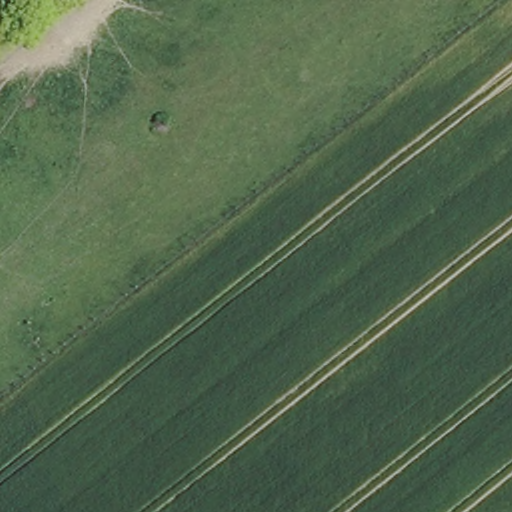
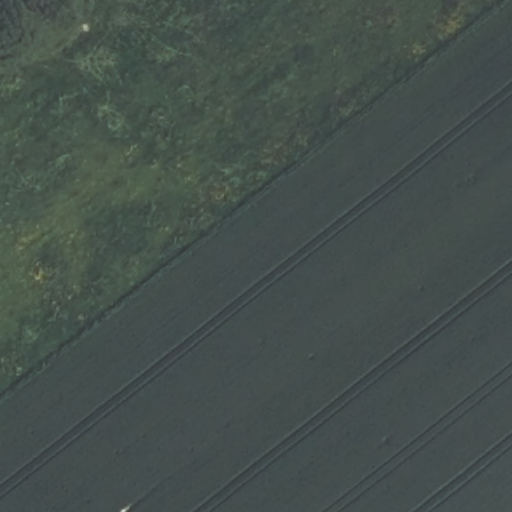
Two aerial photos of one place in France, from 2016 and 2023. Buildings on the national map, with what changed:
[]

